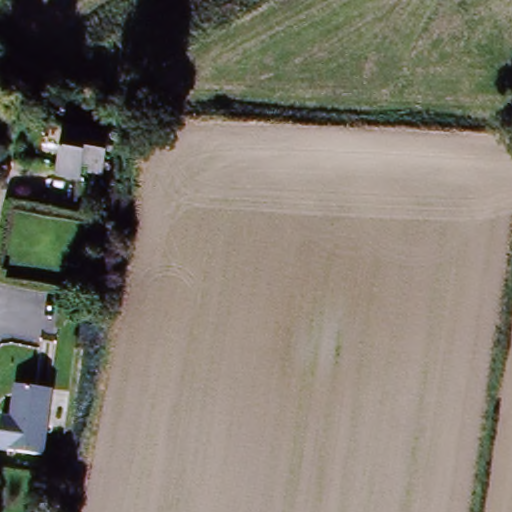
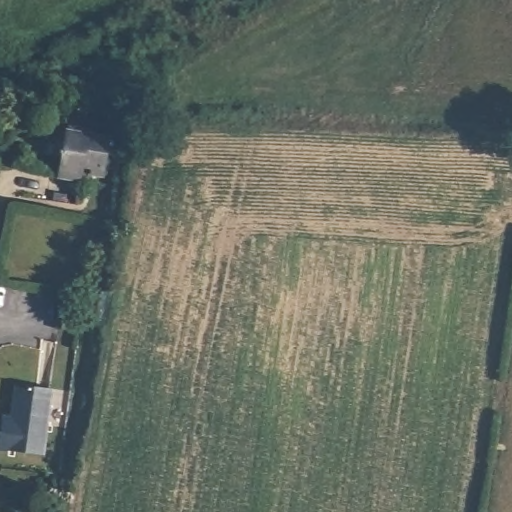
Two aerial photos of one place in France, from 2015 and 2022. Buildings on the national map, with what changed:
unchanged [(80,185),(56,182),(63,134),(109,141),(103,176),(82,173),(80,185)]
unchanged [(2,453),(7,420),(13,421),(17,389),(53,394),(45,458),(2,453)]

